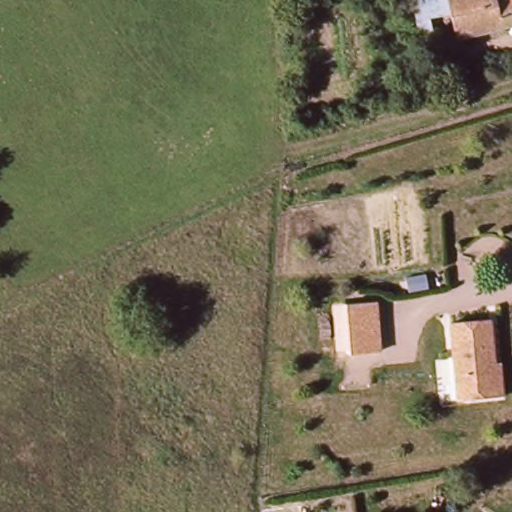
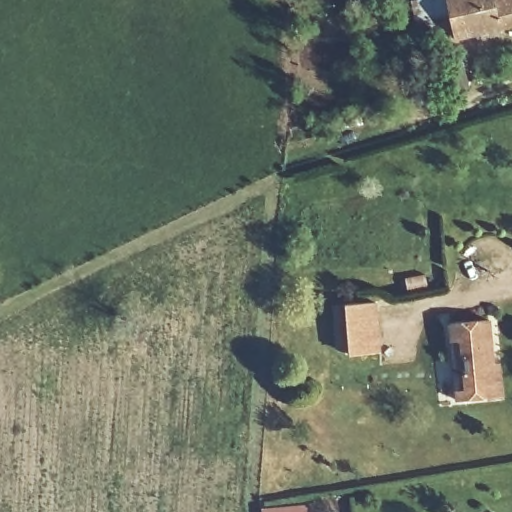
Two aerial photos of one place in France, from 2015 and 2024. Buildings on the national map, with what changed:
unchanged [(431,18),(434,34),(419,38),(411,0),(447,0),(449,13),(431,18)]
unchanged [(512,0),(512,27),(454,39),(447,0),(512,0)]
unchanged [(375,300),(379,351),(349,353),(344,303),(375,300)]
unchanged [(503,394),(498,394),(458,398),(450,321),(489,317),(494,361),(499,360),(503,394)]
unchanged [(262,509),(300,506),(301,512),(262,512),(262,509)]

